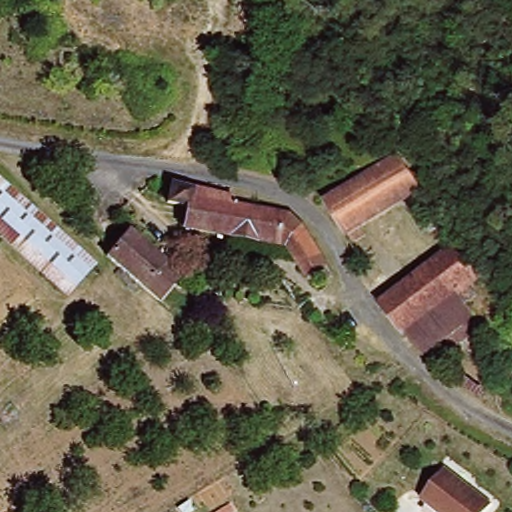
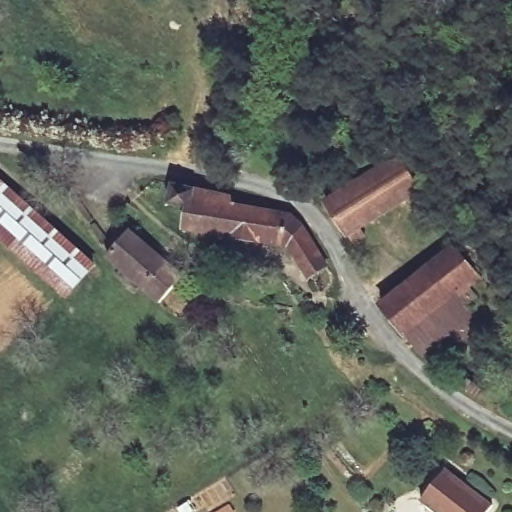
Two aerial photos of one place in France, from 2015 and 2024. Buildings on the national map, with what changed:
unchanged [(345,239),(323,201),(337,192),(396,158),(419,195),(368,224),(345,239)]
unchanged [(94,263),(66,294),(0,234),(0,179),(94,263)]
unchanged [(235,197),(234,201),(269,210),(303,225),(327,263),(308,275),(286,249),(185,227),(190,206),(168,201),(173,183),(235,197)]
unchanged [(160,301),(106,255),(130,228),(183,274),(160,301)]
unchanged [(451,244),(474,271),(446,295),(424,268),(451,244)]
unchanged [(381,303),(424,268),(446,295),(401,333),(400,333),(378,306),(381,303)]
unchanged [(470,326),(445,348),(437,341),(420,356),(418,356),(400,333),(401,333),(446,295),(470,326)]
unchanged [(422,497),(447,466),(495,502),(487,512),(441,512),(422,497)]

